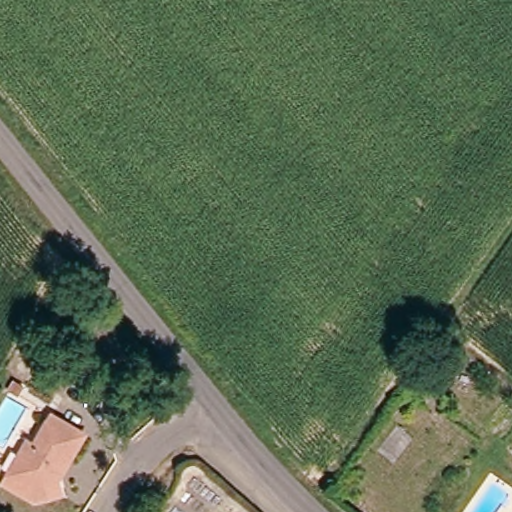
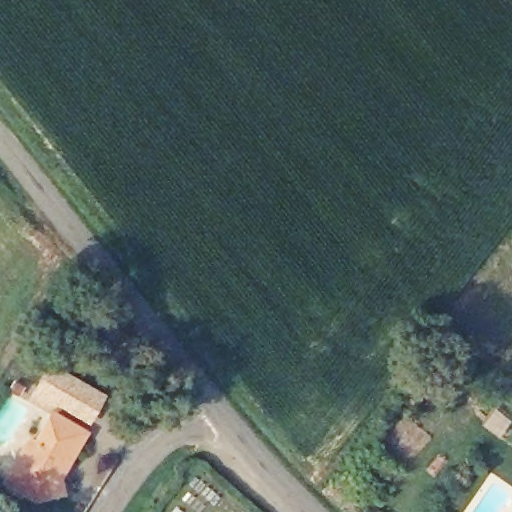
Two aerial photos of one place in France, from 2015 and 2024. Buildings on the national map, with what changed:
new [(50,412),(28,400),(51,362),(106,393),(89,425),(56,406),(50,412)]
unchanged [(60,481),(65,493),(37,503),(27,498),(32,489),(10,477),(29,442),(36,446),(52,416),(85,435),(60,481)]

